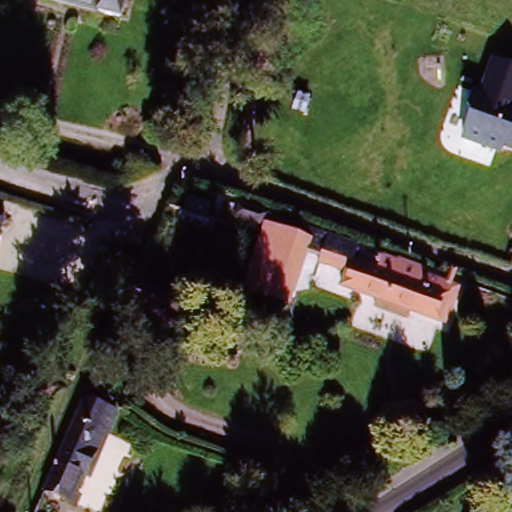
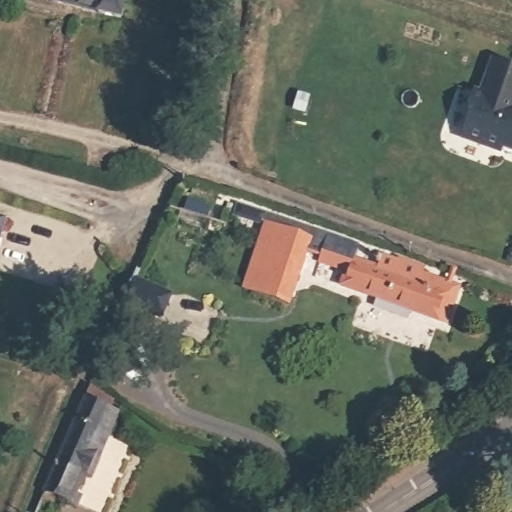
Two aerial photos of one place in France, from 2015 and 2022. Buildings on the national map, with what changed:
unchanged [(127,22),(38,0),(132,0),(127,22)]
unchanged [(482,93),(492,61),(512,67),(512,152),(503,150),(501,155),(459,141),(477,92),(482,93)]
unchanged [(168,215),(175,197),(228,213),(221,229),(168,215)]
unchanged [(448,327),(339,291),(340,272),(309,261),(290,309),(243,294),(263,231),(241,222),(244,206),(462,292),(448,327)]
unchanged [(160,316),(128,302),(138,278),(170,292),(160,316)]
unchanged [(93,433),(86,452),(91,453),(84,472),(78,471),(70,491),(70,493),(74,495),(71,503),(37,491),(76,397),(108,411),(99,433),(93,432),(93,433)]

